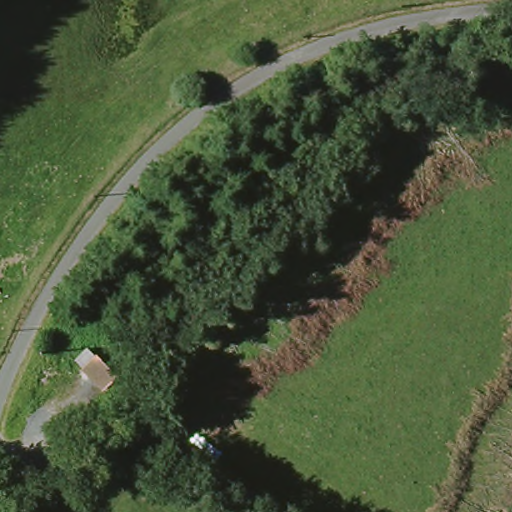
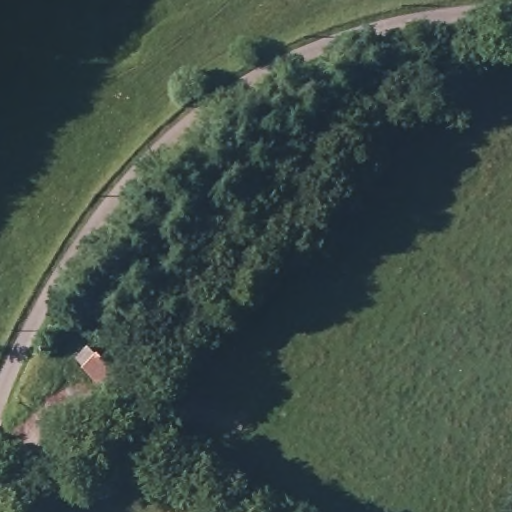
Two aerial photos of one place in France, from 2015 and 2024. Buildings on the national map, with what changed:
unchanged [(118,378),(98,391),(85,368),(105,354),(118,378)]

